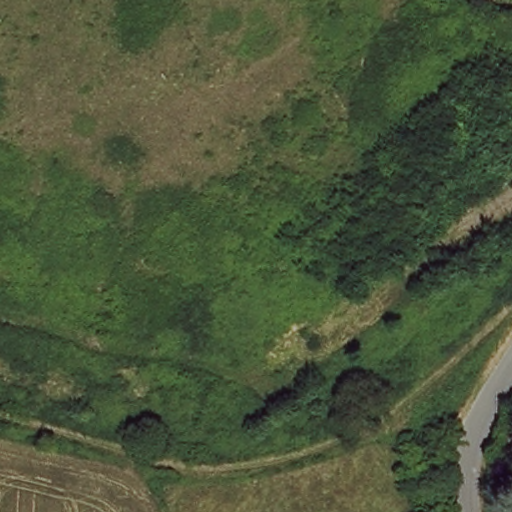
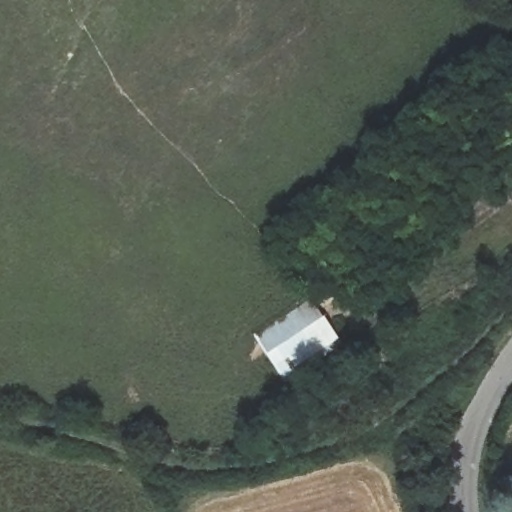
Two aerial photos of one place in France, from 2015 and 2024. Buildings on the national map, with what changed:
new [(311,295),(341,339),(284,379),(253,332),(311,295)]

